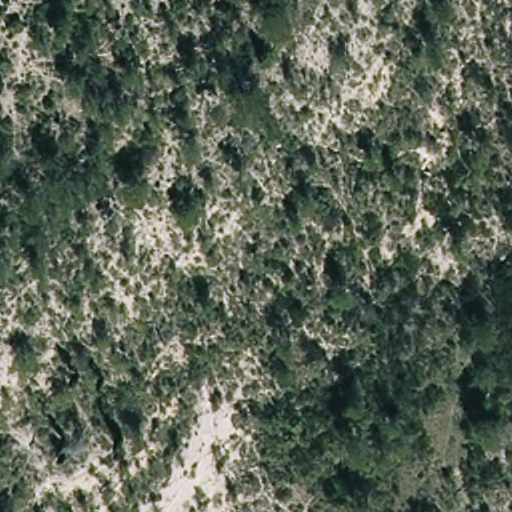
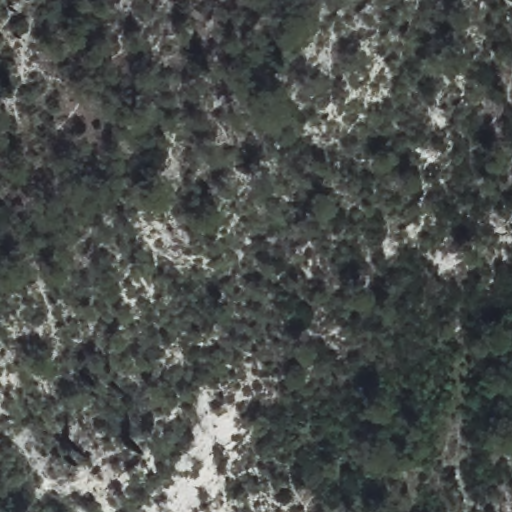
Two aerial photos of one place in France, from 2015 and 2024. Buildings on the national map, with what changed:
[]

